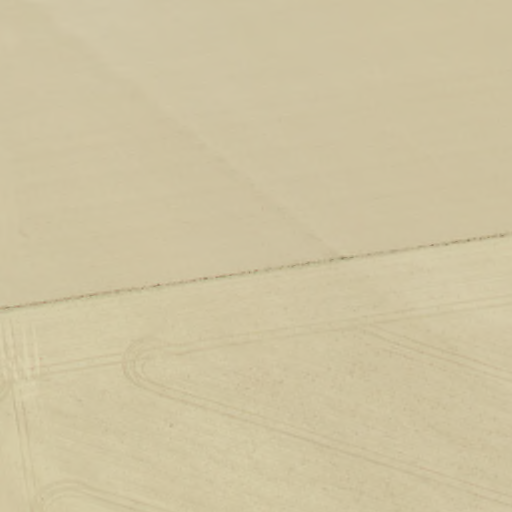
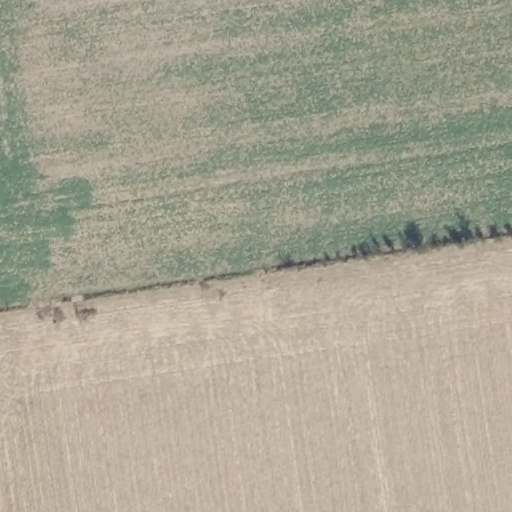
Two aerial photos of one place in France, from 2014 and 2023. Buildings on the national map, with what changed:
[]

